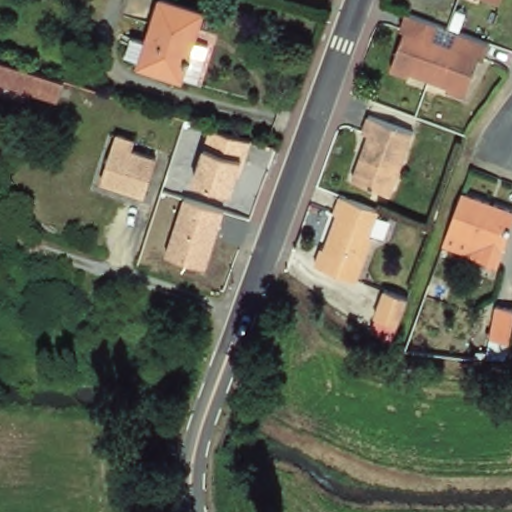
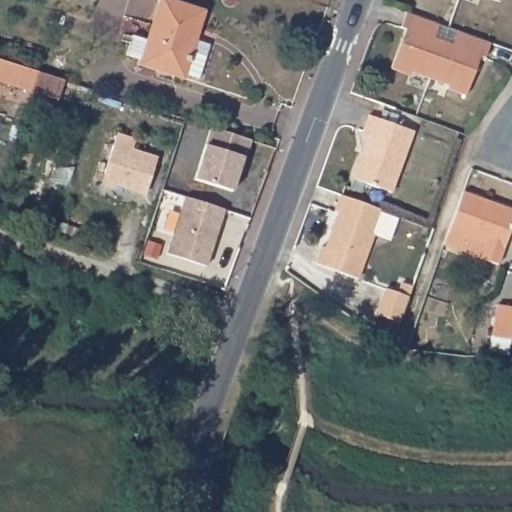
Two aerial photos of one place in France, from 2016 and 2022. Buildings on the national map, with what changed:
unchanged [(197,81),(182,76),(181,79),(138,65),(139,60),(124,55),(130,36),(145,41),(146,39),(159,0),(166,0),(203,12),(194,41),(209,45),(197,81)]
unchanged [(500,6),(484,0),(502,0),(500,6)]
unchanged [(395,33),(402,16),(419,23),(434,28),(429,44),(438,48),(447,51),(453,35),(466,40),(485,47),(479,64),(475,62),(461,100),(442,93),(443,90),(425,83),(406,77),(405,80),(387,73),(400,35),(395,33)]
unchanged [(20,92),(0,86),(0,65),(26,73),(53,81),(46,100),(20,92)]
unchanged [(358,137),(364,120),(409,136),(387,197),(348,184),(364,139),(358,137)]
unchanged [(205,144),(212,127),(251,140),(242,176),(238,175),(232,191),(194,179),(205,144)]
unchanged [(100,181),(115,135),(134,141),(130,150),(155,158),(143,195),(100,181)]
unchanged [(512,210),(512,225),(498,264),(481,257),(444,244),(449,231),(463,192),(512,210)]
unchanged [(223,209),(205,267),(166,254),(184,196),(223,209)]
unchanged [(333,215),(339,199),(379,214),(370,237),(374,238),(364,267),(338,258),(332,275),(314,268),(321,252),(324,253),(338,217),(333,215)]
unchanged [(385,284),(409,293),(399,319),(376,310),(385,284)]
unchanged [(512,308),(512,327),(509,340),(490,336),(496,305),(512,308)]

